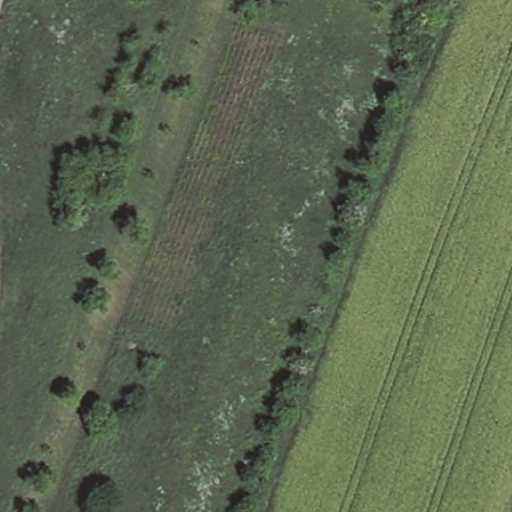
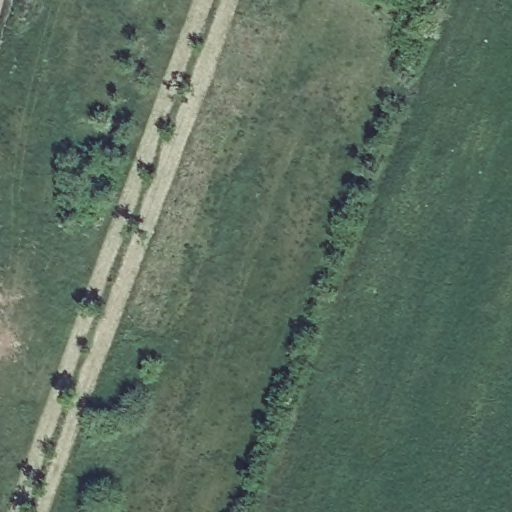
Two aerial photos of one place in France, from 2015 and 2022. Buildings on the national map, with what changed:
[]

